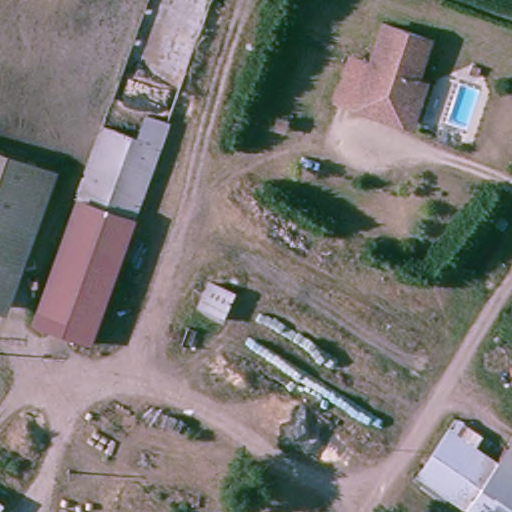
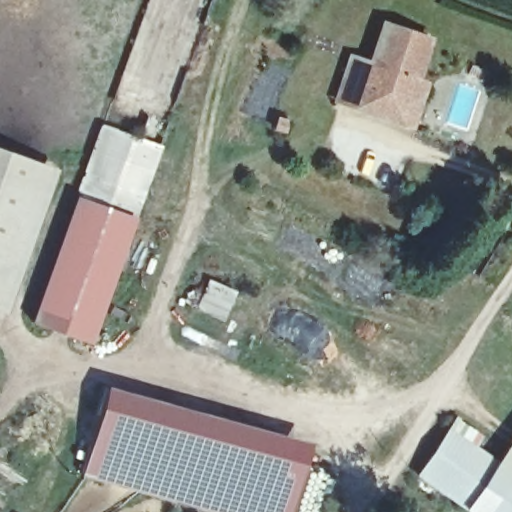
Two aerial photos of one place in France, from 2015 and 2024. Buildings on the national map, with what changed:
unchanged [(337,96),(353,53),(372,60),(387,21),(432,38),(418,75),(403,114),(382,106),(385,100),(360,91),(356,103),(337,96)]
unchanged [(138,219),(72,196),(97,126),(133,139),(143,111),(172,122),(138,219)]
unchanged [(0,155),(50,173),(0,310),(0,155)]
unchanged [(27,319),(72,196),(138,219),(94,346),(31,321),(27,319)]
unchanged [(219,319),(191,307),(204,275),(232,288),(219,319)]
new [(216,512),(81,474),(107,383),(308,442),(289,512),(216,512)]
unchanged [(472,512),(412,472),(455,415),(482,431),(476,442),(500,455),(512,436),(512,512),(472,512)]
demolished [(0,505),(0,503),(1,503),(0,505)]

